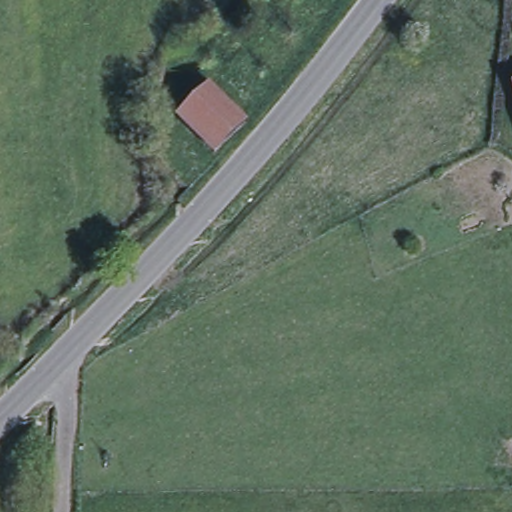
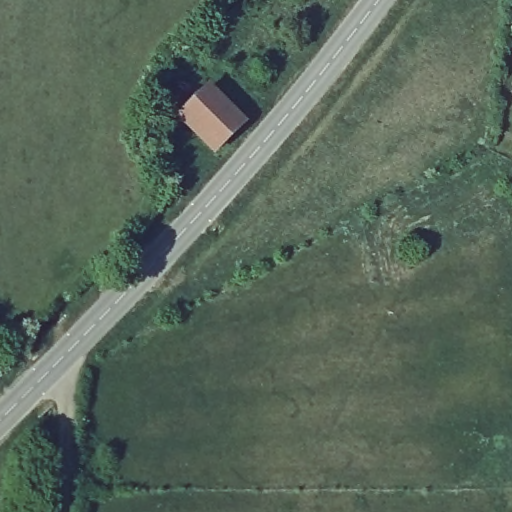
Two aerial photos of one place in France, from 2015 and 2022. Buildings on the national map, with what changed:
unchanged [(245,121),(216,150),(181,115),(209,86),(245,121)]

